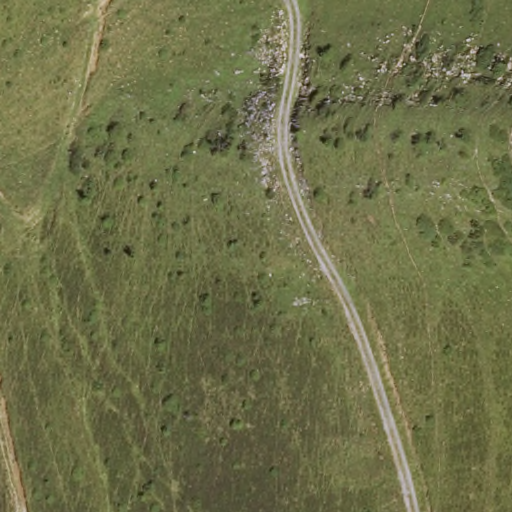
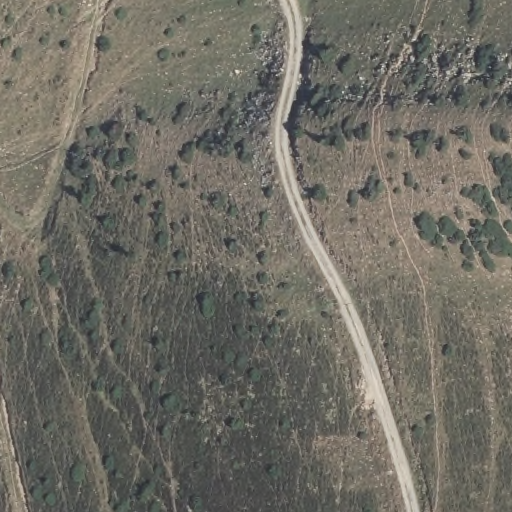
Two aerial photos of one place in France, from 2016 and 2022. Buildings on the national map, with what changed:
[]

